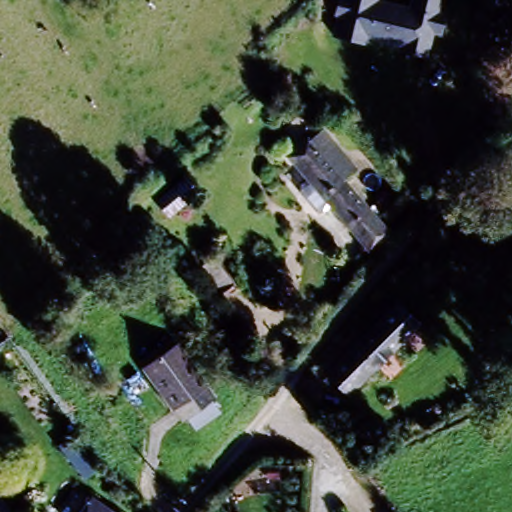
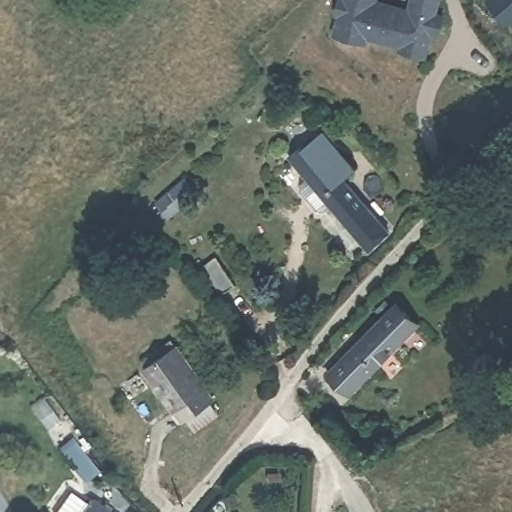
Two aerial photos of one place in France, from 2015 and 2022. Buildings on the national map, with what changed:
unchanged [(335,38),(342,0),(448,0),(439,57),(335,38)]
unchanged [(298,190),(305,184),(285,160),(308,139),(328,162),(333,157),(350,177),(345,182),(390,236),(368,256),(328,210),(322,216),(314,215),(299,197),(298,190)]
unchanged [(155,203),(168,191),(186,213),(172,225),(155,203)]
unchanged [(224,286),(207,261),(219,252),(237,277),(224,286)]
unchanged [(347,405),(328,385),(397,307),(417,326),(347,405)]
unchanged [(184,418),(181,421),(172,407),(170,409),(142,366),(176,342),(205,387),(203,388),(211,400),(208,402),(216,416),(191,430),(184,418)]

